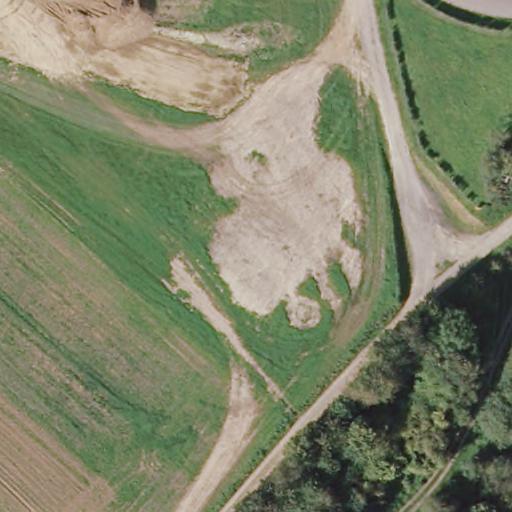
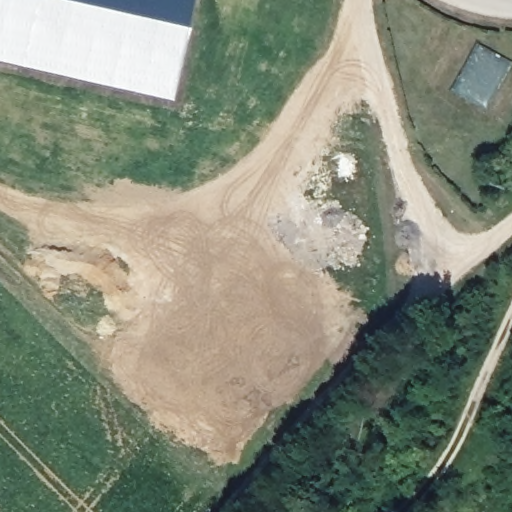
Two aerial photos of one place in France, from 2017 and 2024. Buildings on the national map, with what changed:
new [(172,97),(0,58),(0,0),(193,0),(172,97)]

